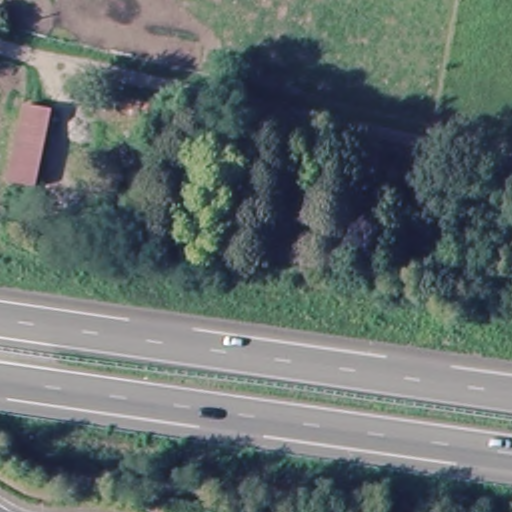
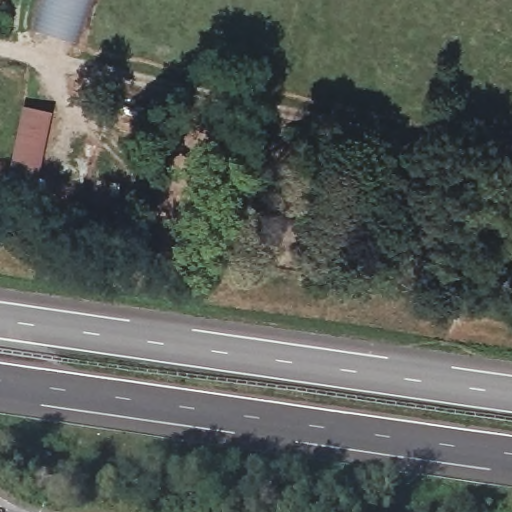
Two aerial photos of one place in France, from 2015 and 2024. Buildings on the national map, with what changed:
new [(36,0),(90,0),(78,43),(28,28),(36,0)]
unchanged [(50,111),(33,188),(8,182),(15,151),(25,106),(50,111)]

